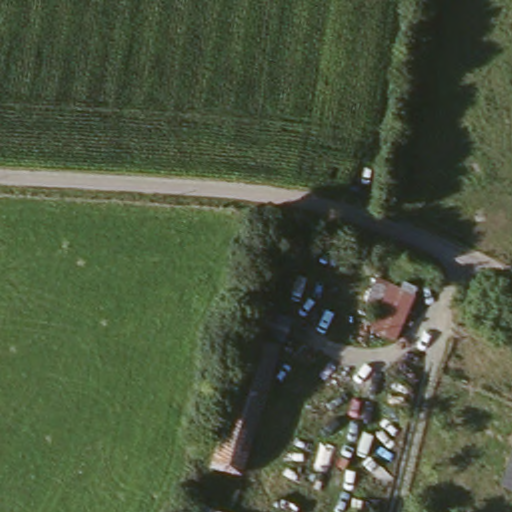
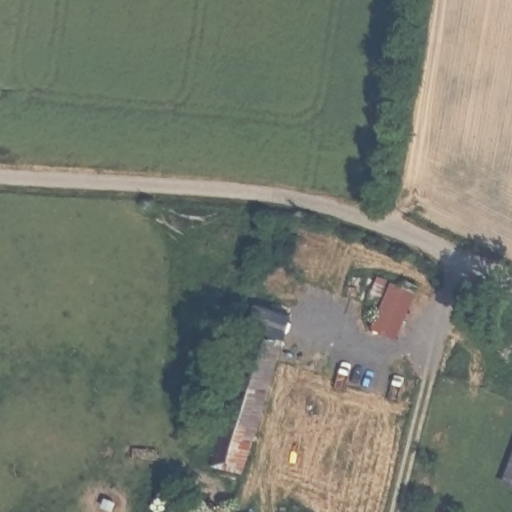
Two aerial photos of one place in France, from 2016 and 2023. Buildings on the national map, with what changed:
unchanged [(417,292),(396,342),(352,329),(376,277),(417,292)]
unchanged [(255,336),(286,346),(276,376),(244,367),(255,336)]
unchanged [(276,376),(245,474),(212,464),(244,367),(276,376)]
unchanged [(512,460),(512,491),(502,487),(512,460)]
unchanged [(200,512),(204,502),(233,512),(200,512)]

